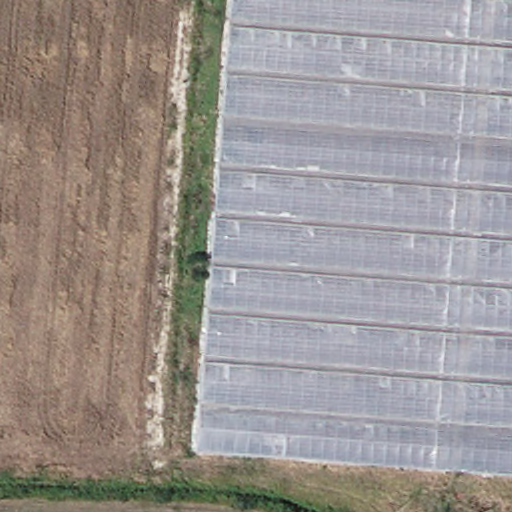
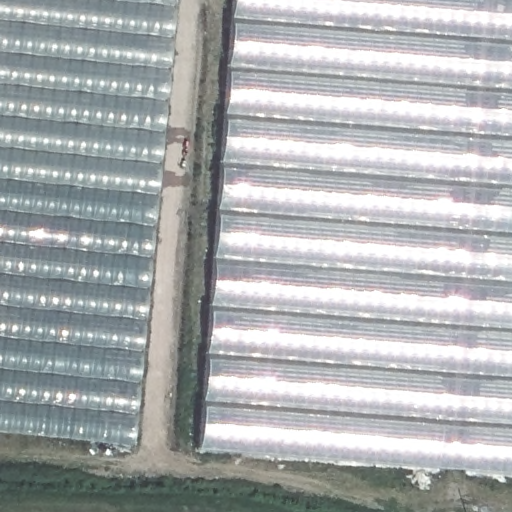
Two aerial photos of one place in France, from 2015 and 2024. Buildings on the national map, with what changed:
new [(137,445),(0,431),(0,0),(168,0),(137,445)]
unchanged [(236,0),(512,0),(512,475),(202,451),(236,0)]

